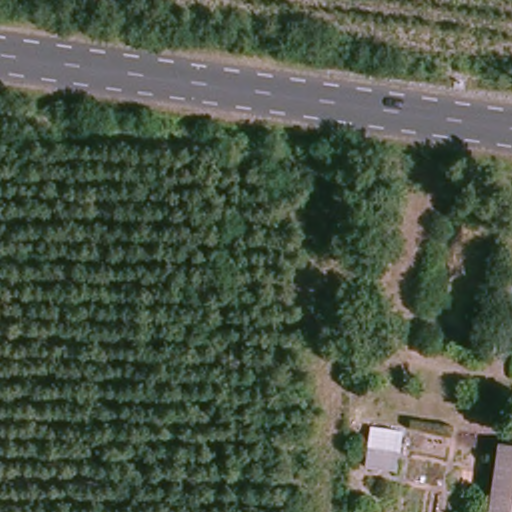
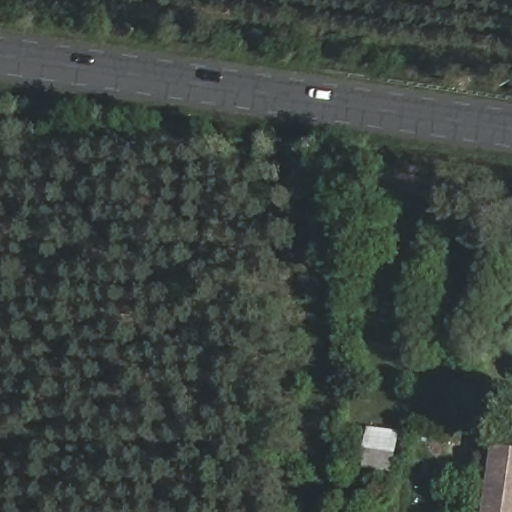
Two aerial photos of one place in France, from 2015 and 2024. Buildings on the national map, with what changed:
unchanged [(366,468),(373,433),(407,437),(400,473),(366,468)]
unchanged [(512,449),(512,512),(495,512),(500,473),(499,448),(512,449)]

